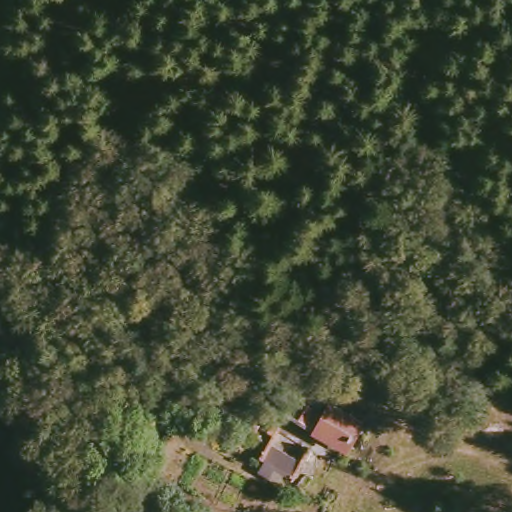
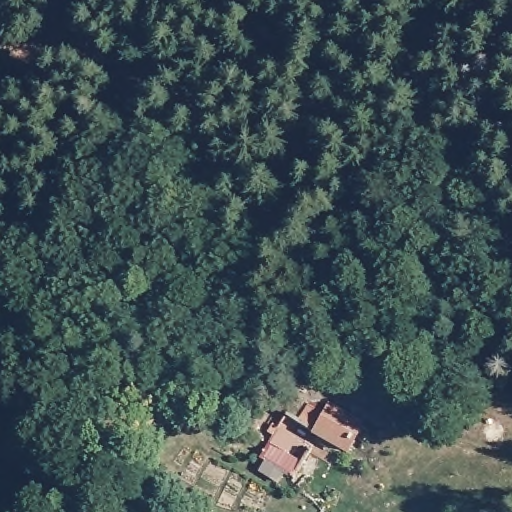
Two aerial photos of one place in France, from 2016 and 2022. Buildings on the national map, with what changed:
unchanged [(288,423),(301,404),(318,413),(325,402),(361,423),(343,458),(309,436),(288,423)]
unchanged [(259,461),(253,457),(265,439),(299,460),(288,480),(280,476),(273,485),(252,471),(259,461)]

